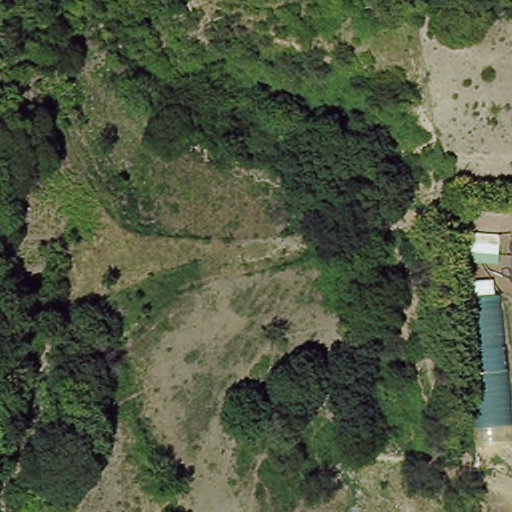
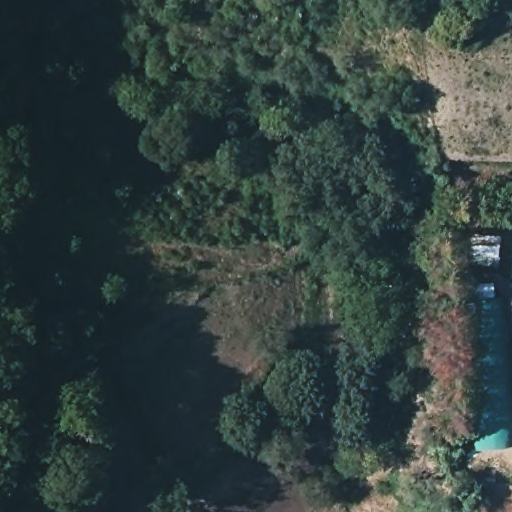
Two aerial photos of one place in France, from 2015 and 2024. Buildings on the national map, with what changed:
unchanged [(503,300),(512,403),(512,426),(482,427),(470,300),(503,300)]

